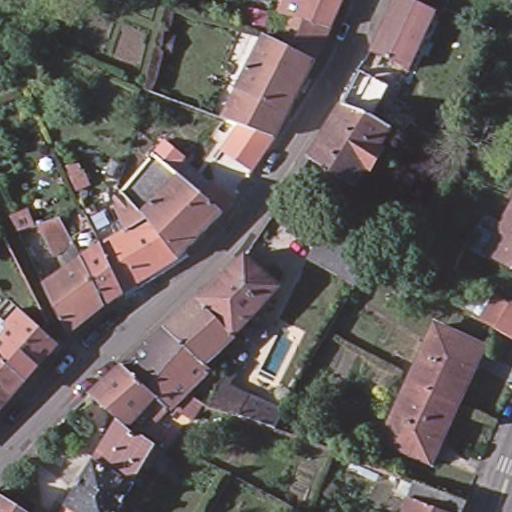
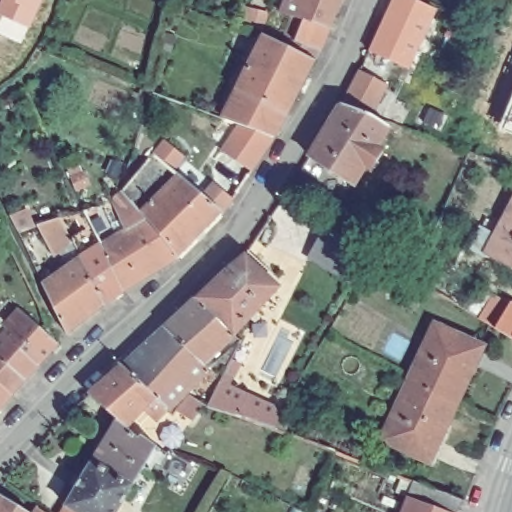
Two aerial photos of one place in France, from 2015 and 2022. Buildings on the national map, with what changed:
new [(0,13),(0,4),(2,0),(42,0),(29,29),(0,13)]
unchanged [(295,33),(302,35),(306,21),(284,15),(290,0),(345,0),(333,28),(324,50),(320,61),(292,113),(242,91),(269,38),(290,47),(292,41),(295,33)]
unchanged [(413,0),(422,5),(435,11),(405,71),(367,51),(392,0),(413,0)]
unchanged [(413,0),(424,0),(422,5),(413,0)]
unchanged [(280,139),(227,120),(242,91),(292,113),(280,139)]
unchanged [(377,115),(395,126),(383,144),(387,146),(373,171),(368,168),(357,185),(312,156),(347,104),(377,115)]
new [(501,133),(512,107),(512,137),(501,133)]
unchanged [(105,245),(87,210),(90,209),(107,205),(116,202),(125,191),(137,179),(157,154),(173,168),(187,179),(147,215),(181,260),(157,274),(125,294),(109,307),(85,259),(105,245)]
unchanged [(181,260),(147,215),(187,179),(227,213),(181,260)]
unchanged [(46,233),(40,235),(37,227),(20,232),(12,215),(29,207),(39,226),(42,225),(64,218),(77,243),(64,252),(57,255),(46,233)]
unchanged [(487,258),(512,210),(512,272),(487,258)]
unchanged [(312,254),(329,225),(376,254),(359,282),(312,254)]
unchanged [(70,334),(47,284),(72,267),(85,259),(109,307),(70,334)]
unchanged [(205,406),(189,399),(172,417),(167,414),(168,411),(155,403),(150,401),(120,371),(163,333),(194,306),(245,260),(278,293),(237,338),(240,345),(238,349),(230,362),(225,360),(234,353),(229,346),(209,364),(214,369),(209,373),(198,382),(215,390),(220,380),(230,386),(226,392),(245,400),(280,414),(272,433),(237,419),(205,406)]
unchanged [(507,334),(490,324),(504,302),(512,306),(512,337),(507,334)]
unchanged [(0,355),(0,344),(13,330),(9,326),(24,311),(47,331),(62,345),(30,382),(0,355)]
unchanged [(407,388),(432,328),(480,347),(453,408),(407,388)]
unchanged [(0,355),(30,382),(0,416),(0,355)]
unchanged [(87,402),(120,371),(150,401),(155,403),(145,415),(150,420),(140,431),(134,426),(128,432),(118,424),(87,402)]
unchanged [(453,408),(429,462),(382,442),(407,388),(453,408)]
unchanged [(118,424),(128,432),(142,442),(143,441),(157,450),(142,476),(130,495),(92,468),(97,459),(118,424)]
unchanged [(120,512),(66,512),(65,511),(92,468),(130,495),(120,512)]
unchanged [(414,495),(420,482),(469,500),(464,512),(407,512),(414,495)]
unchanged [(0,501),(19,512),(0,512),(0,501)]
unchanged [(65,511),(66,512),(64,512),(65,511)]

